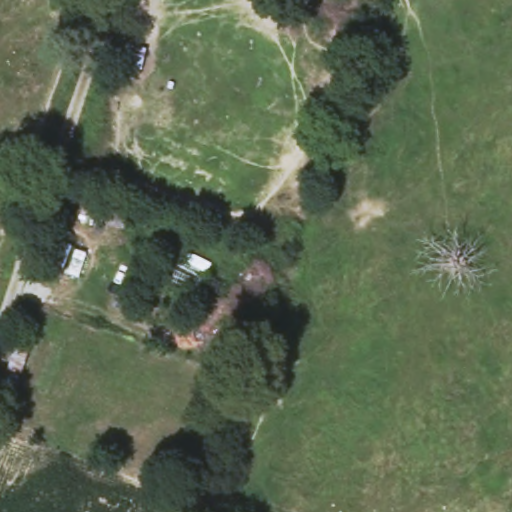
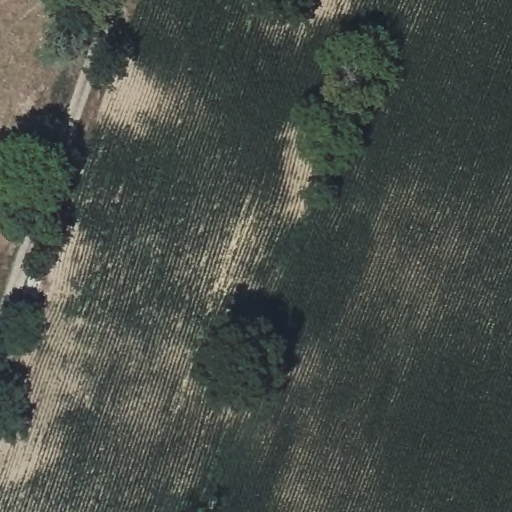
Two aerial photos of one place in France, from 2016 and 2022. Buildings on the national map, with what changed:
unchanged [(92,192),(137,207),(130,229),(81,215),(92,192)]
unchanged [(20,338),(36,344),(17,395),(0,390),(20,338)]

